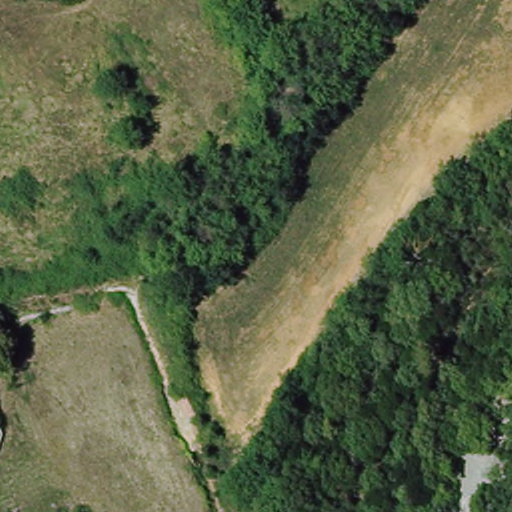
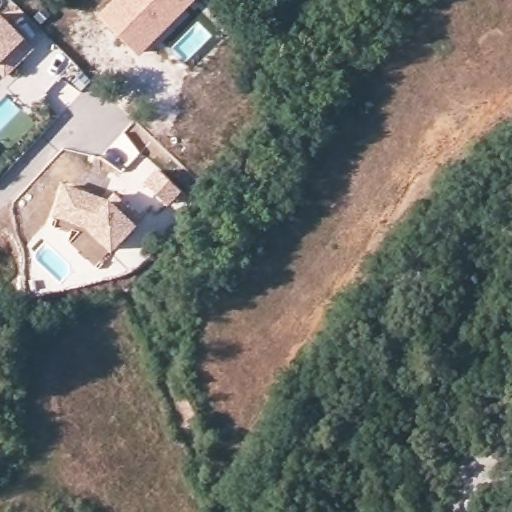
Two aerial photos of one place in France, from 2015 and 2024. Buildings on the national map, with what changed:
new [(187,0),(137,51),(98,12),(109,0),(187,0)]
new [(28,42),(0,71),(0,15),(28,42)]
new [(154,166),(177,186),(164,200),(142,180),(154,166)]
new [(61,181),(106,197),(112,189),(138,214),(110,245),(83,221),(52,209),(61,181)]

